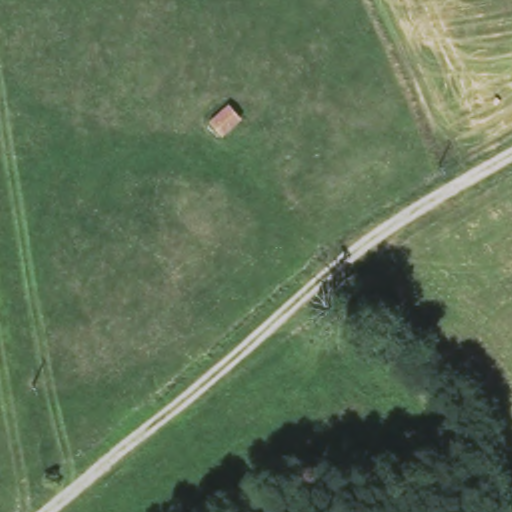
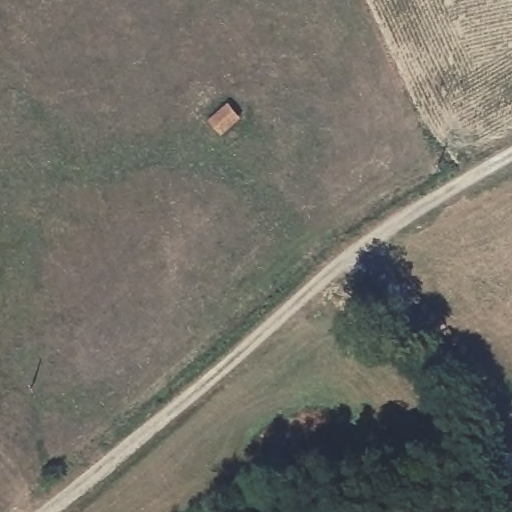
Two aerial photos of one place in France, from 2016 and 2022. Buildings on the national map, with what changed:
unchanged [(230,94),(245,110),(221,132),(206,119),(230,94)]

